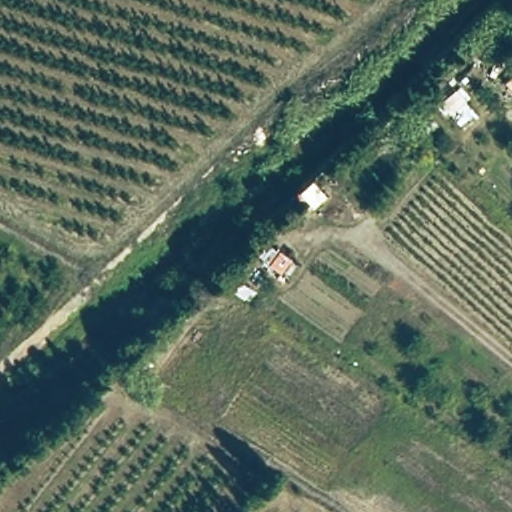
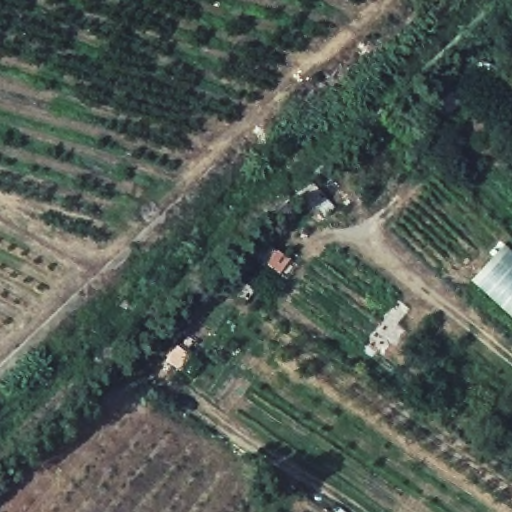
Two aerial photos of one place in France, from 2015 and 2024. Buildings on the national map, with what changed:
new [(501,239),(512,250),(512,318),(470,279),(501,239)]

